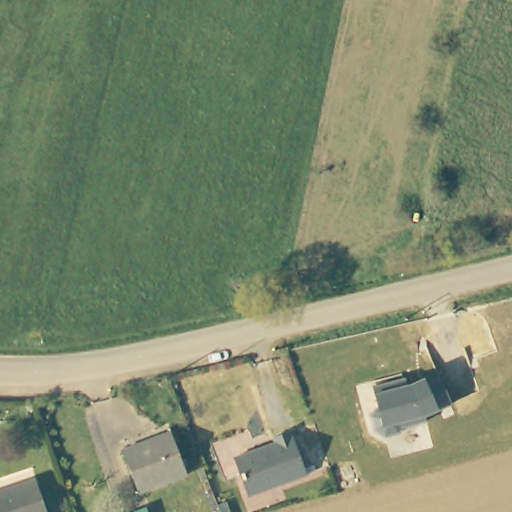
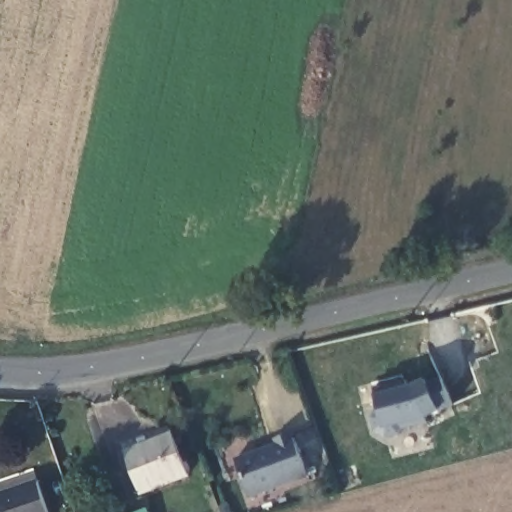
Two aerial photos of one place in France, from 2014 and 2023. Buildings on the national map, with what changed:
unchanged [(453,405),(425,416),(426,421),(403,427),(402,427),(398,433),(385,437),(376,431),(372,417),(377,410),(379,410),(373,388),(388,384),(406,380),(408,387),(411,386),(426,380),(428,385),(441,378),(453,405)]
unchanged [(256,497),(243,458),(284,443),(282,437),(299,432),(301,437),(302,437),(315,475),(256,497)]
unchanged [(193,475),(143,492),(127,449),(159,439),(160,443),(180,437),(193,475)]
unchanged [(27,485),(38,482),(47,512),(0,512),(0,494),(27,485)]
unchanged [(146,512),(138,512),(145,510),(146,512)]

